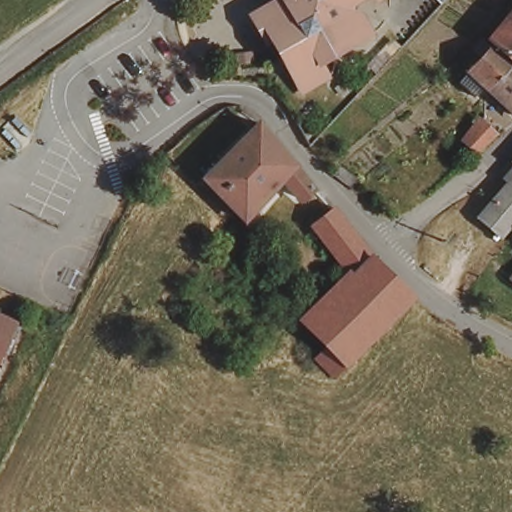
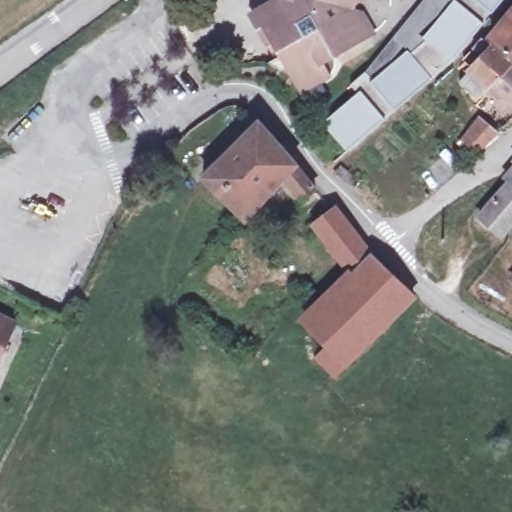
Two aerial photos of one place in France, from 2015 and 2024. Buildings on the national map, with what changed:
unchanged [(272,66),(269,61),(281,54),(272,37),(256,10),(273,0),(352,0),(350,11),(361,14),(371,32),(336,53),(322,61),(330,74),(303,90),(288,64),(279,69),(272,66)]
new [(491,16),(483,24),(451,63),(433,79),(396,110),(384,120),(346,150),(323,123),(360,93),(352,85),(366,73),(424,0),(505,0),(491,16)]
unchanged [(493,39),(512,15),(512,52),(511,52),(493,39)]
unchanged [(477,49),(485,39),(512,59),(512,98),(495,83),(482,91),(467,79),(486,56),(477,49)]
unchanged [(498,133),(480,158),(462,145),(480,120),(498,133)]
unchanged [(272,136),(316,192),(306,204),(286,181),(246,225),(204,181),(262,124),(272,136)]
unchanged [(504,189),(512,179),(512,196),(508,192),(504,189)]
unchanged [(491,254),(487,251),(494,242),(478,228),(508,192),(512,196),(512,231),(500,245),(491,254)]
unchanged [(316,362),(326,352),(302,326),(303,325),(313,314),(348,280),(314,232),(335,213),(360,246),(373,261),(411,298),(345,367),(342,370),(331,380),(316,362)]
unchanged [(512,274),(512,282),(508,278),(512,274)]
demolished [(512,288),(508,285),(512,281),(512,288)]
unchanged [(13,326),(0,354),(0,319),(13,326)]

